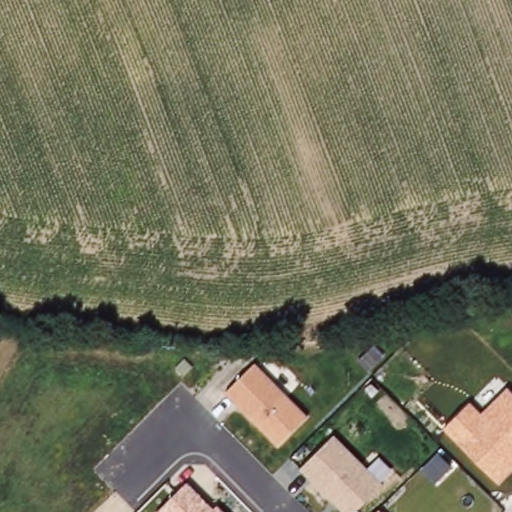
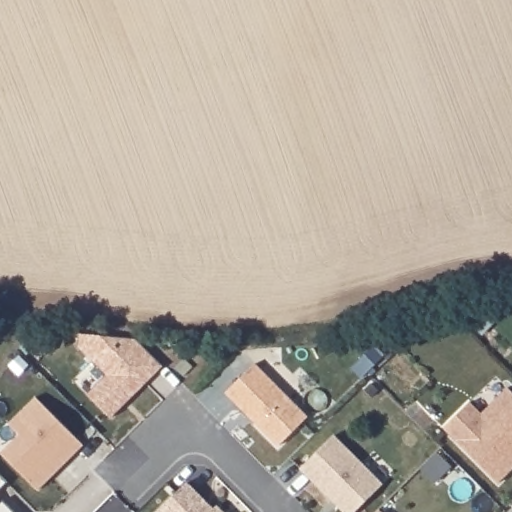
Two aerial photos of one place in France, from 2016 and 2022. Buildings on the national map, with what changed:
new [(82,337),(137,345),(166,370),(114,422),(91,399),(110,380),(81,350),(82,337)]
unchanged [(277,447),(226,392),(255,363),(307,418),(277,447)]
unchanged [(445,428),(472,402),(482,413),(508,387),(512,391),(512,469),(497,482),(445,428)]
new [(0,453),(19,434),(8,423),(37,396),(85,445),(39,490),(0,453)]
unchanged [(355,512),(343,512),(300,468),(332,435),(383,487),(355,512)]
new [(0,498),(0,472),(13,485),(0,498)]
unchanged [(189,481),(218,512),(158,512),(189,481)]
new [(8,503),(17,512),(0,512),(0,504),(3,507),(8,503)]
unchanged [(382,508),(385,512),(378,512),(382,508)]

